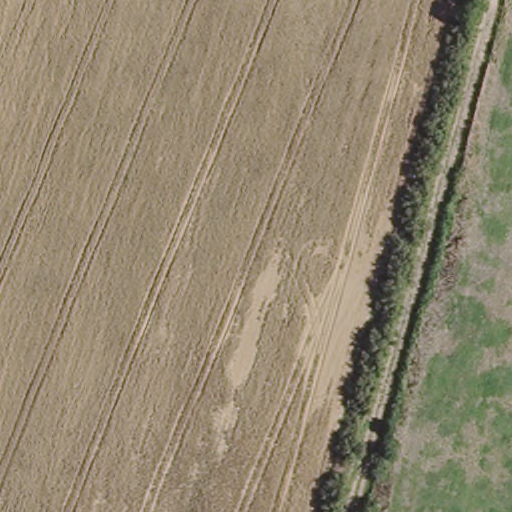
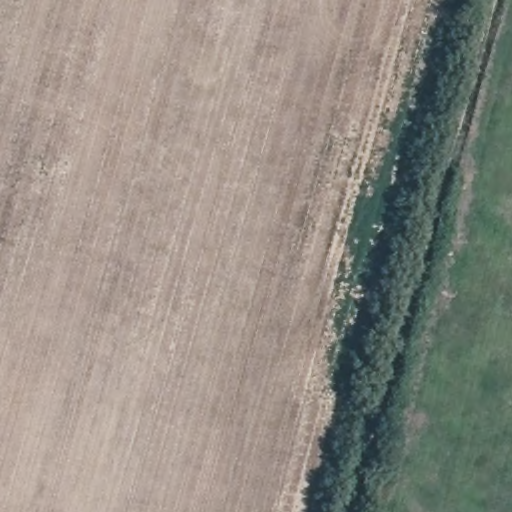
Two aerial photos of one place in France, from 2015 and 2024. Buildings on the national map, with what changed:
[]

